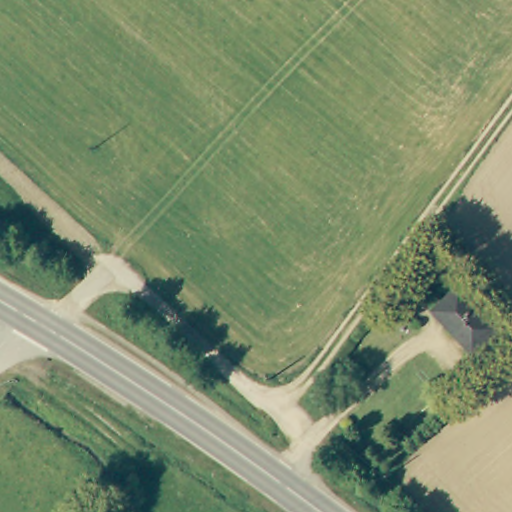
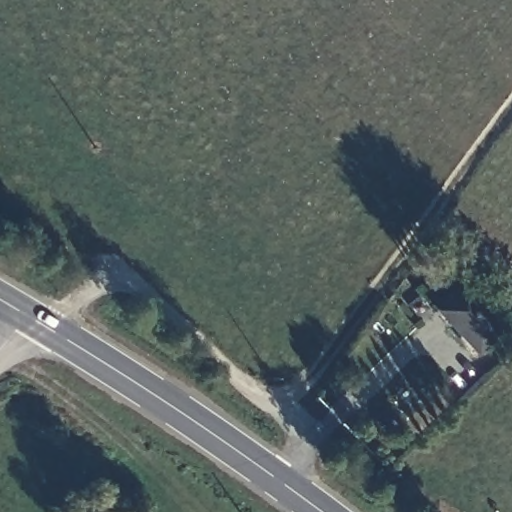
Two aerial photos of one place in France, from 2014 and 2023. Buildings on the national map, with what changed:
unchanged [(506,328),(480,352),(440,305),(467,281),(506,328)]

